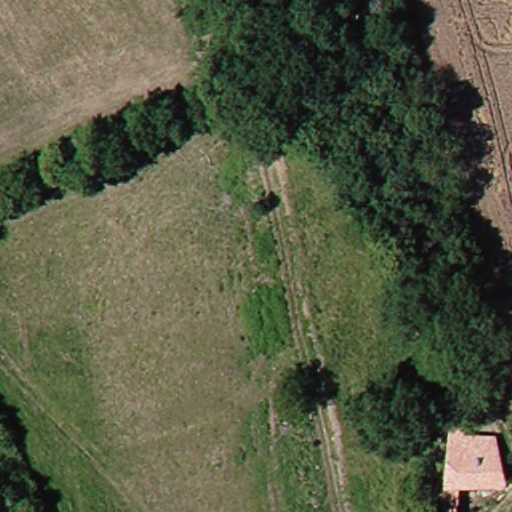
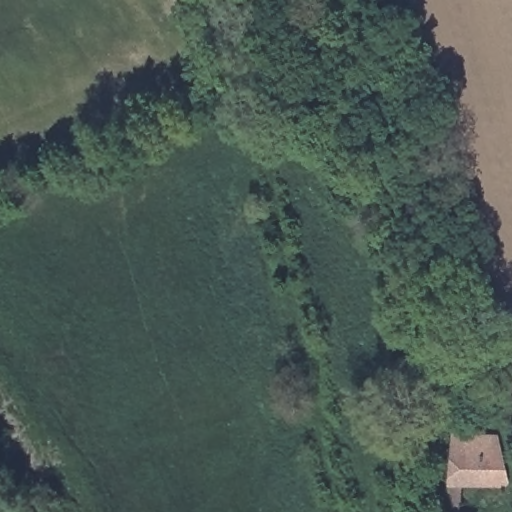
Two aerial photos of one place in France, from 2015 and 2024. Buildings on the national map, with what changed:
unchanged [(443,428),(459,426),(462,438),(489,432),(508,477),(470,490),(475,512),(457,512),(443,428)]

